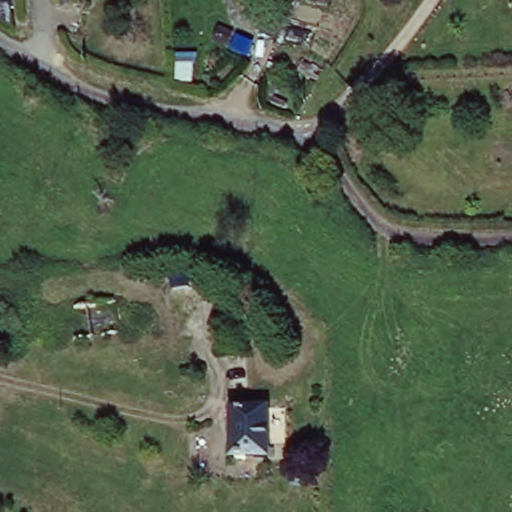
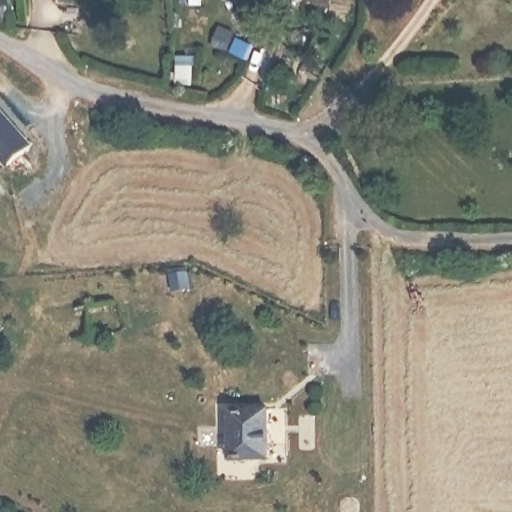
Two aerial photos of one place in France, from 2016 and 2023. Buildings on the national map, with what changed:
unchanged [(0,8),(0,0),(12,0),(13,6),(0,8)]
new [(307,5),(308,0),(327,0),(326,9),(307,5)]
new [(5,176),(0,171),(0,108),(34,140),(5,176)]
unchanged [(272,404),(272,456),(231,456),(230,405),(272,404)]

